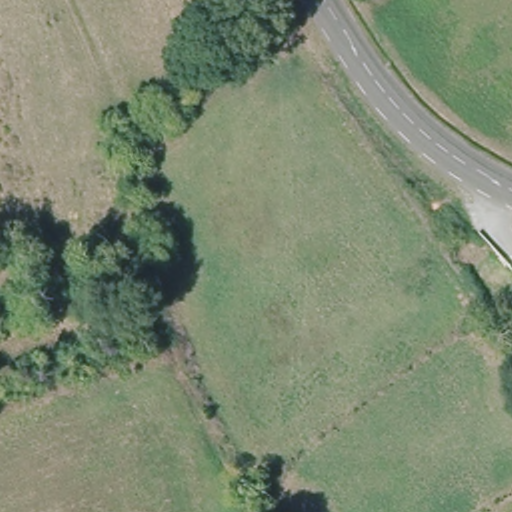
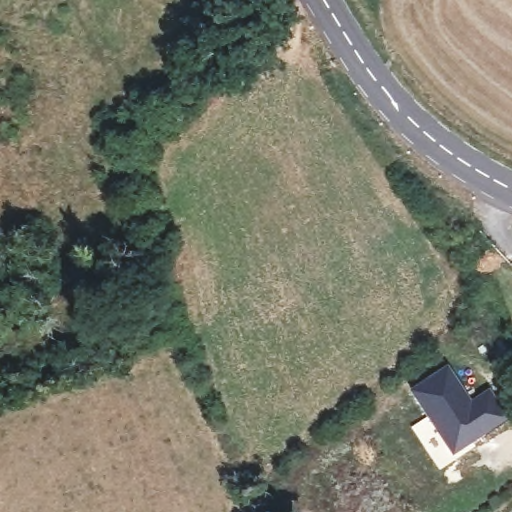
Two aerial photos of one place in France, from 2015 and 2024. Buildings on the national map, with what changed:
new [(447,363),(471,398),(490,386),(509,417),(452,455),(408,390),(447,363)]

